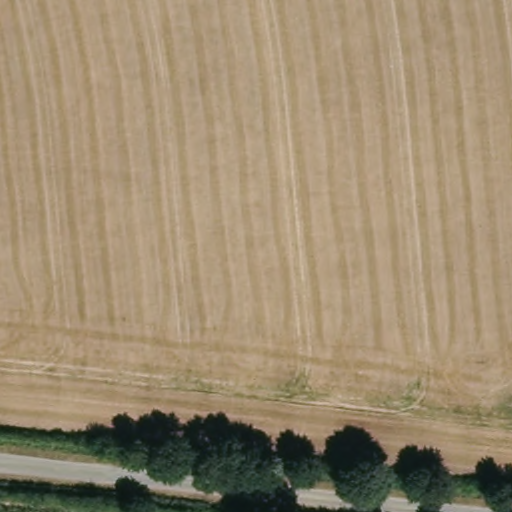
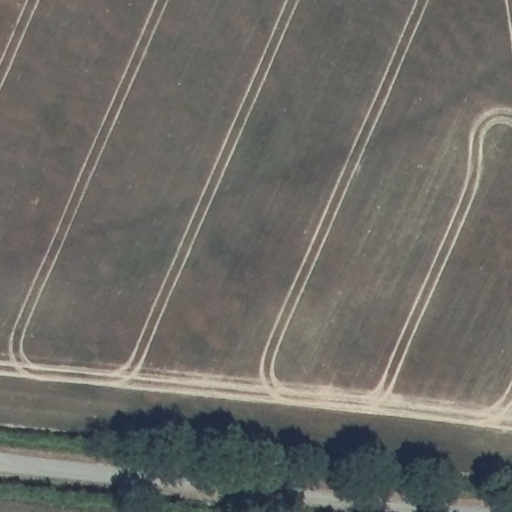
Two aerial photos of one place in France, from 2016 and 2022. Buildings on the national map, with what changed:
[]

